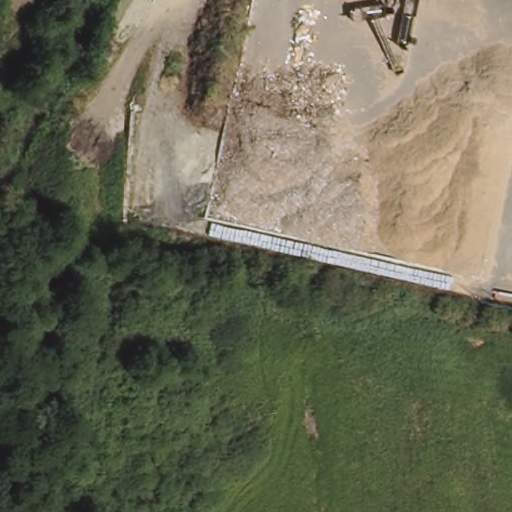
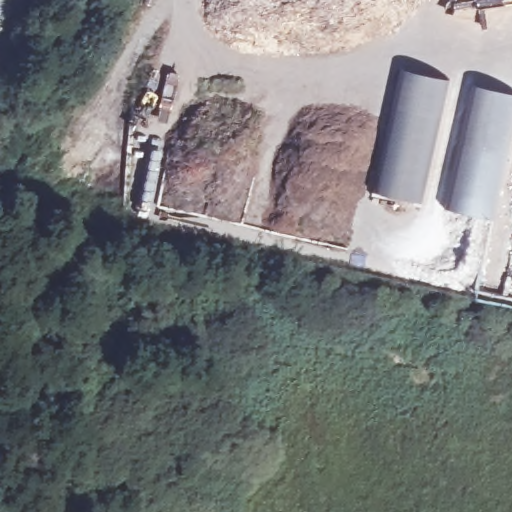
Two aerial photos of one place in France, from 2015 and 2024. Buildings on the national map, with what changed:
new [(423,205),(372,194),(402,69),(451,81),(423,205)]
new [(491,219),(446,209),(474,87),(512,95),(512,133),(491,219)]

